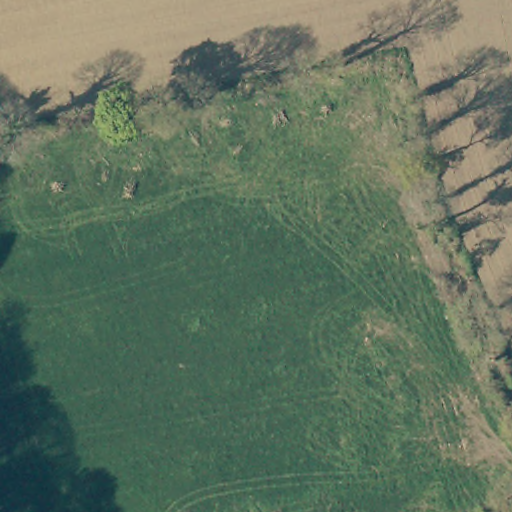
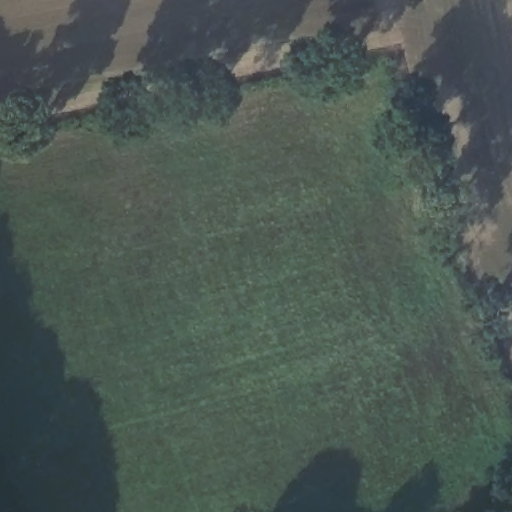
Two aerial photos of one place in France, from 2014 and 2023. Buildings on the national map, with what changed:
[]

